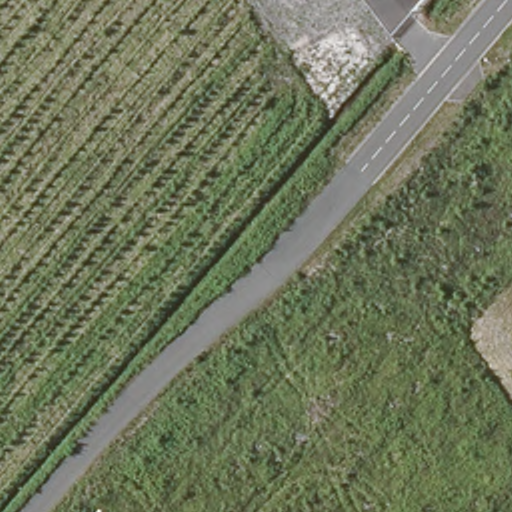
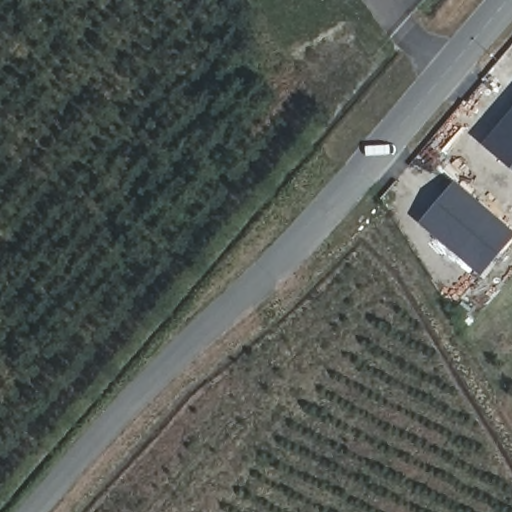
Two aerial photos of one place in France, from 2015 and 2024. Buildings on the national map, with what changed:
new [(483,145),(512,110),(512,171),(483,145)]
new [(482,278),(418,224),(455,180),(512,229),(512,240),(482,278)]

